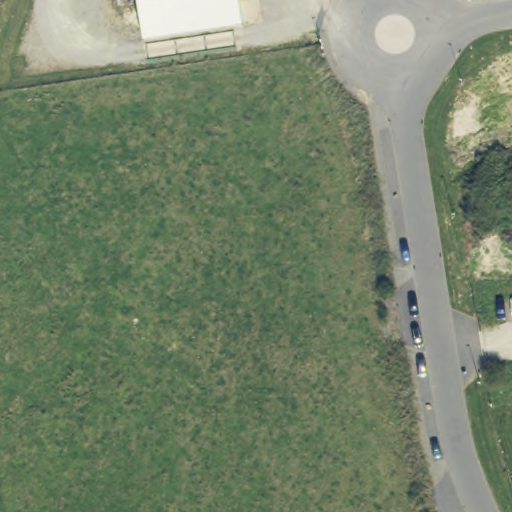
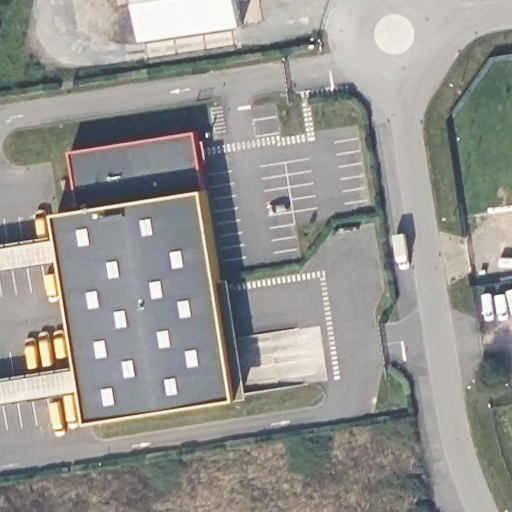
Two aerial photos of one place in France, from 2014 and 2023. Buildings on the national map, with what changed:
unchanged [(141,39),(135,0),(237,0),(241,23),(141,39)]
new [(198,132),(207,190),(222,283),(233,282),(250,397),(240,400),(91,422),(59,214),(83,210),(73,151),(198,132)]

